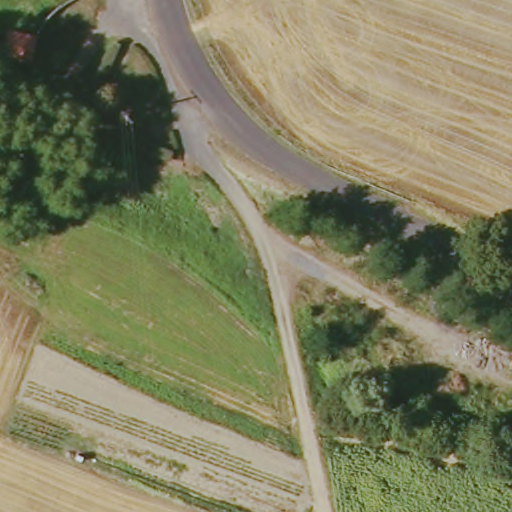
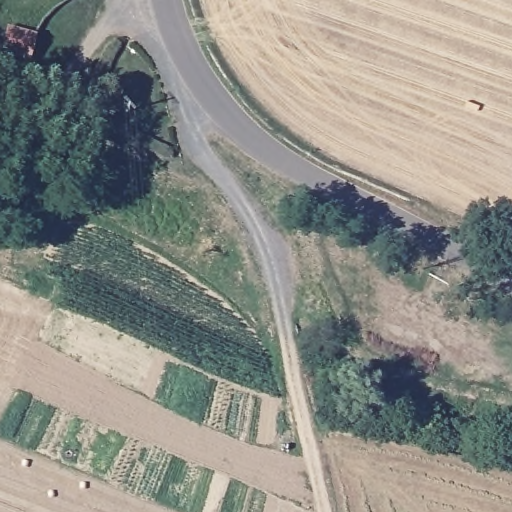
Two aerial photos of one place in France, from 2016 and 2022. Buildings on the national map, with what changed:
unchanged [(7,60),(13,37),(42,43),(37,66),(7,60)]

